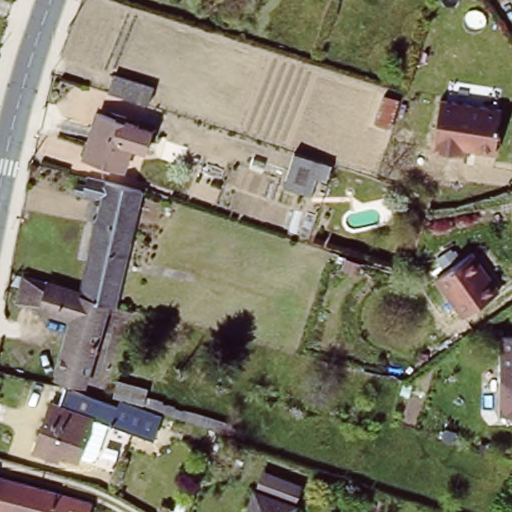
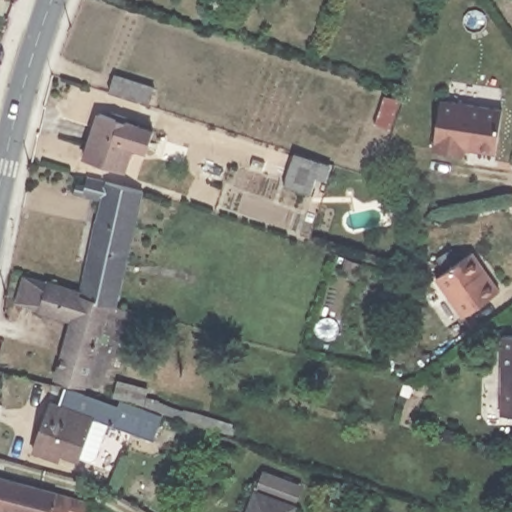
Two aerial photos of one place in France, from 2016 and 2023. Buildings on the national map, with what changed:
unchanged [(112,90),(117,72),(157,86),(151,103),(112,90)]
unchanged [(487,113),(486,154),(430,149),(432,106),(487,113)]
unchanged [(152,125),(145,146),(129,141),(122,165),(82,152),(95,108),(152,125)]
unchanged [(325,161),(314,194),(290,187),(287,185),(297,152),(325,161)]
unchanged [(83,290),(84,288),(105,196),(78,190),(81,177),(90,180),(92,173),(145,186),(145,187),(119,300),(83,290)]
unchanged [(465,257),(493,297),(457,322),(429,282),(465,257)]
unchanged [(83,290),(119,300),(115,313),(108,312),(105,320),(111,321),(110,325),(122,328),(115,353),(97,347),(87,380),(60,372),(77,315),(25,300),(33,275),(84,288),(83,290)]
unchanged [(512,416),(495,416),(492,341),(512,342),(512,416)]
unchanged [(155,405),(146,429),(106,416),(94,452),(79,447),(77,453),(54,446),(52,452),(34,446),(51,396),(61,400),(66,385),(121,403),(124,395),(155,405)]
unchanged [(96,497),(92,512),(25,512),(0,505),(0,471),(96,497)]
unchanged [(294,503),(290,512),(246,512),(255,490),(294,503)]

